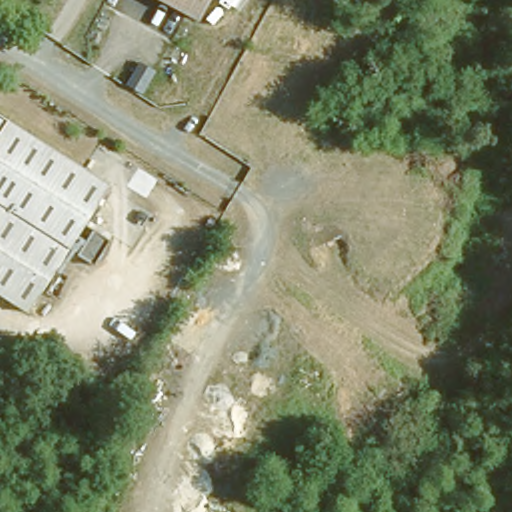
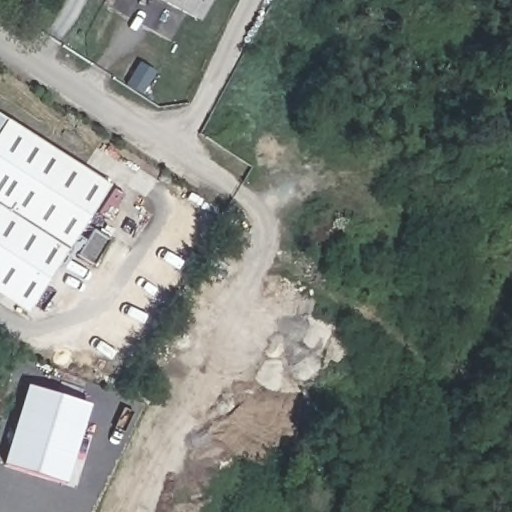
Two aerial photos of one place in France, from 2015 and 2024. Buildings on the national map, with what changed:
unchanged [(161,0),(213,0),(202,21),(161,0)]
unchanged [(33,303),(0,284),(0,110),(111,177),(33,303)]
unchanged [(154,208),(135,237),(95,211),(113,182),(154,208)]
unchanged [(111,234),(97,257),(77,244),(93,222),(111,234)]
new [(65,482),(1,463),(25,385),(88,404),(65,482)]

